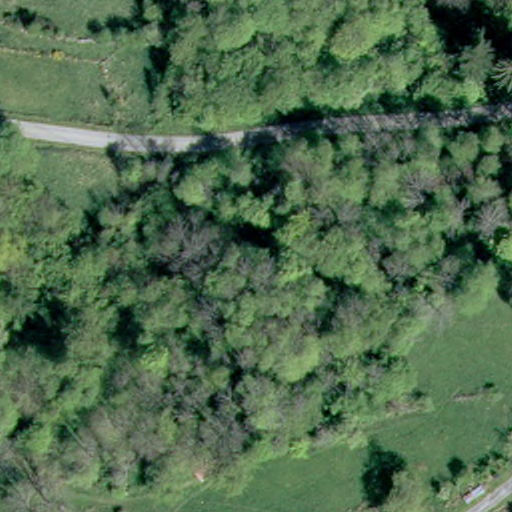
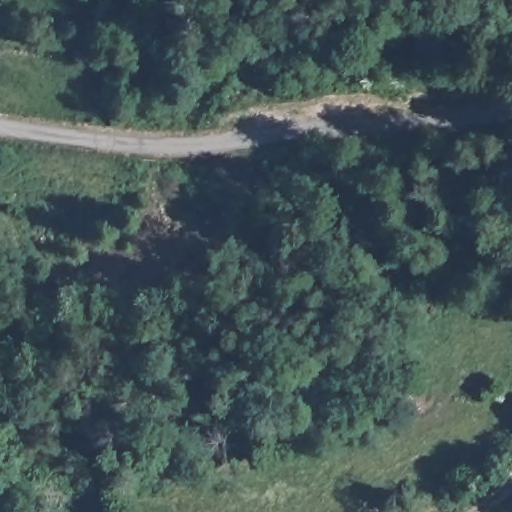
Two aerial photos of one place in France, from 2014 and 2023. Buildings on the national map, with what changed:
[]

